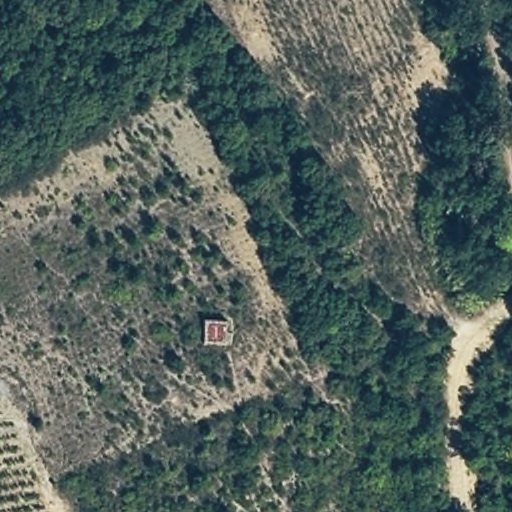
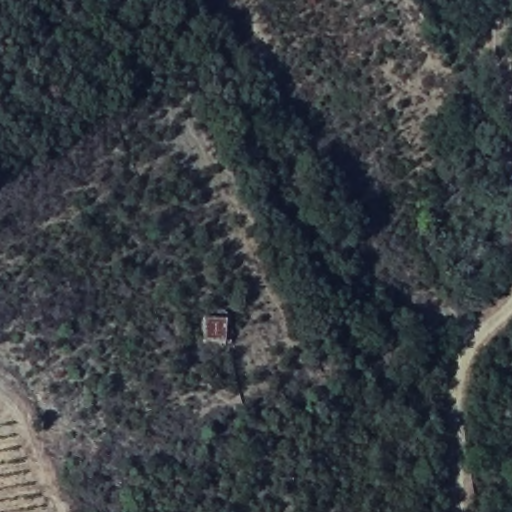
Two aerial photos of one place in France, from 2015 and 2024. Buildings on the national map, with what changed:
unchanged [(225,308),(227,340),(204,343),(202,312),(225,308)]

